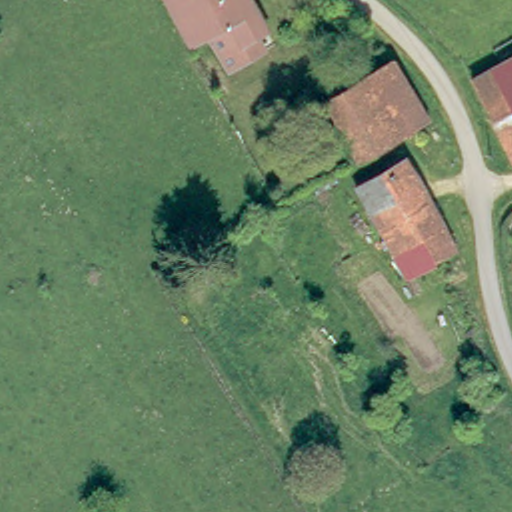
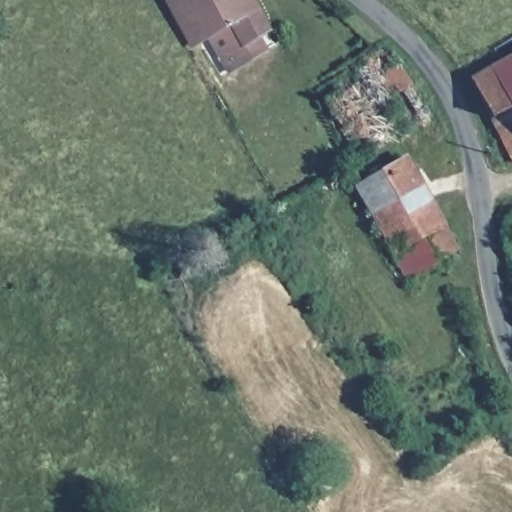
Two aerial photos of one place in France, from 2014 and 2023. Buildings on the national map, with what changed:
unchanged [(248,42),(243,34),(235,39),(223,20),(187,43),(160,0),(251,0),(269,30),(248,42)]
unchanged [(490,116),(472,80),(467,77),(512,57),(512,113),(510,109),(490,116)]
unchanged [(363,161),(325,101),(391,58),(430,116),(385,147),(363,161)]
unchanged [(512,113),(512,160),(492,119),(490,116),(510,109),(512,113)]
unchanged [(408,279),(360,191),(398,168),(410,162),(443,226),(456,251),(447,256),(408,279)]

